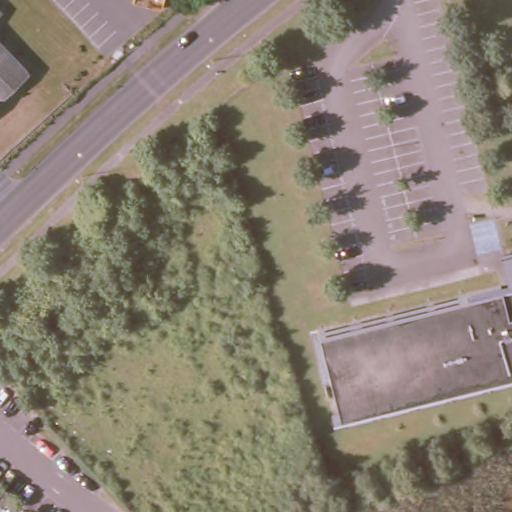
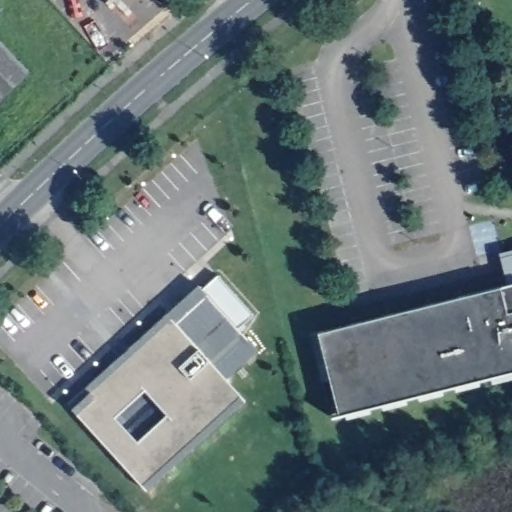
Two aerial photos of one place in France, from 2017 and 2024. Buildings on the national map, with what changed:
unchanged [(0,15),(0,3),(6,9),(0,15)]
unchanged [(0,34),(30,66),(2,94),(0,92),(0,34)]
unchanged [(0,96),(0,92),(2,94),(0,96)]
unchanged [(333,414),(315,330),(507,291),(502,264),(512,262),(512,377),(333,414)]
new [(122,363),(128,370),(139,360),(132,353),(217,274),(253,313),(238,327),(252,343),(220,373),(240,395),(244,399),(147,490),(143,485),(73,408),(122,363)]
new [(197,284),(202,289),(132,353),(139,360),(128,370),(122,363),(73,408),(70,404),(197,284)]
new [(252,343),(257,348),(225,379),(220,373),(252,343)]

